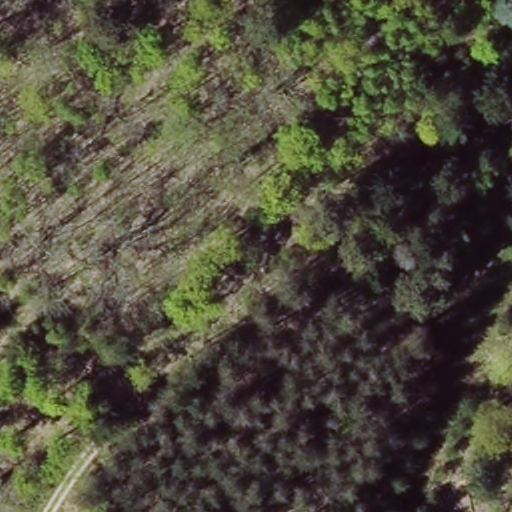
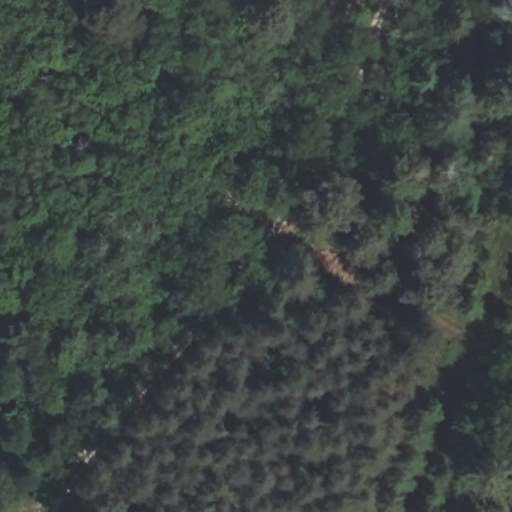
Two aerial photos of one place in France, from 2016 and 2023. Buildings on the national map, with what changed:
[]

